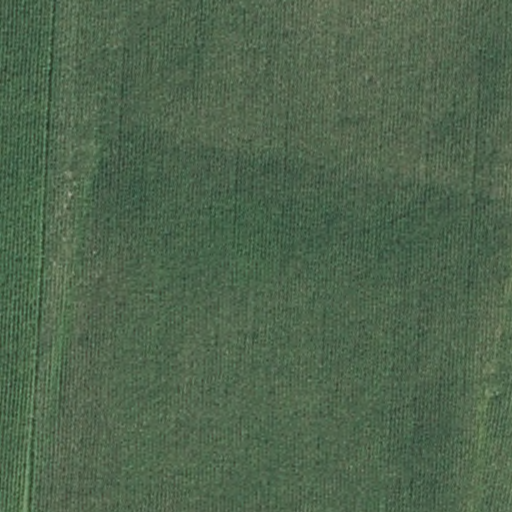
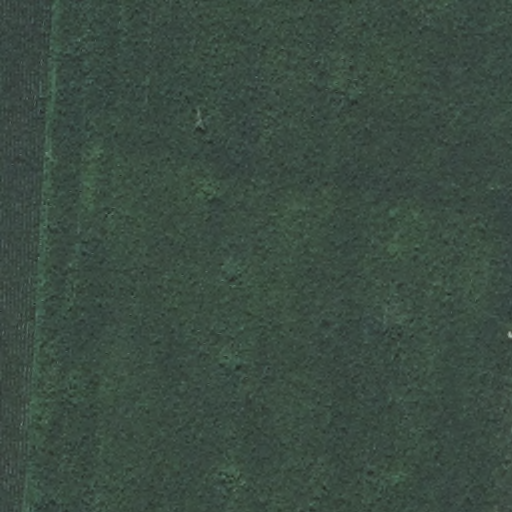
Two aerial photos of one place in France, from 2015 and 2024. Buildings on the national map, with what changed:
[]

